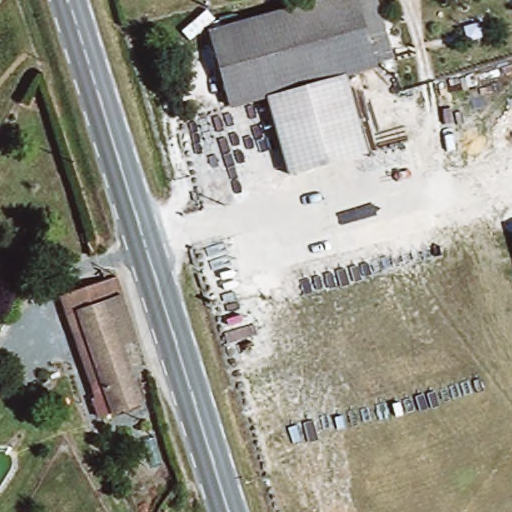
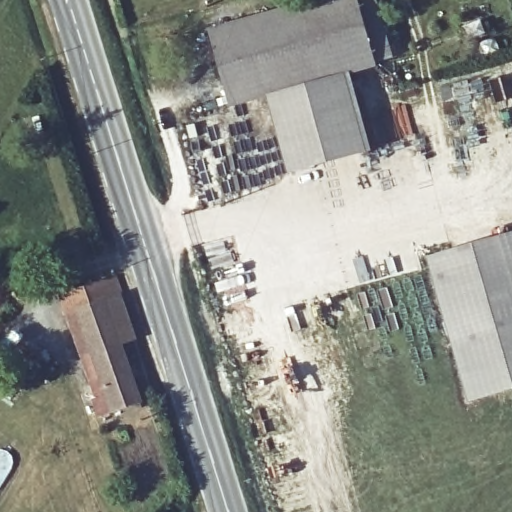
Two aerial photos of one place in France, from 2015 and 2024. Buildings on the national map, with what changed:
unchanged [(360,0),(377,59),(237,100),(217,31),(321,0),(360,0)]
unchanged [(379,0),(396,55),(377,59),(360,0),(379,0)]
unchanged [(346,68),(371,151),(290,175),(267,91),(346,68)]
new [(428,257),(512,233),(512,391),(469,403),(428,257)]
unchanged [(135,340),(119,345),(136,402),(91,416),(79,378),(89,375),(69,312),(59,315),(54,296),(115,276),(121,293),(135,340)]

